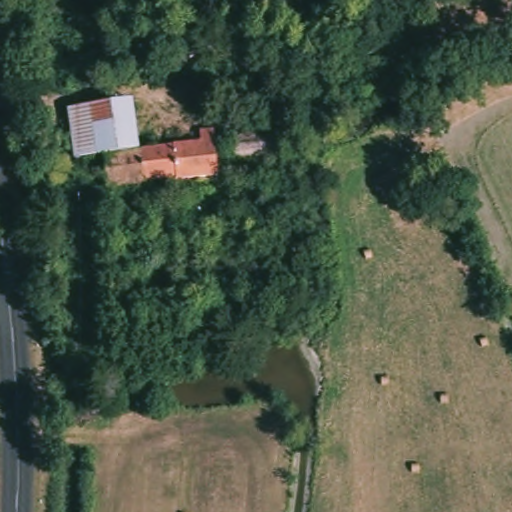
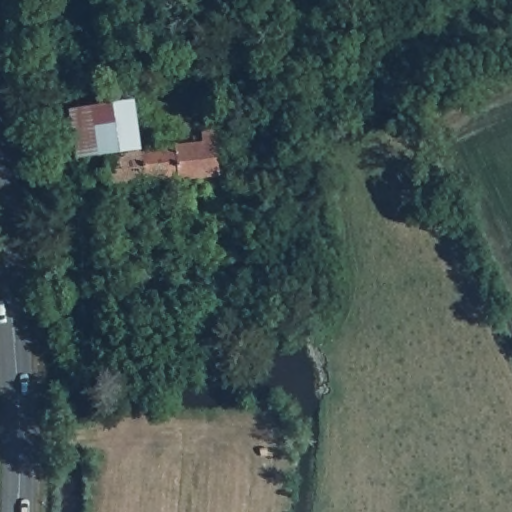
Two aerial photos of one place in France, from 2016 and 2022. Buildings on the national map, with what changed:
unchanged [(194,37),(213,35),(216,66),(197,66),(194,37)]
unchanged [(246,48),(292,69),(285,81),(241,61),(246,48)]
unchanged [(52,118),(110,113),(113,152),(56,156),(52,118)]
unchanged [(117,155),(221,143),(221,138),(239,135),(241,163),(240,176),(193,184),(191,174),(161,179),(161,188),(120,194),(118,189),(117,155)]
unchanged [(249,163),(249,139),(289,140),(291,161),(249,163)]

